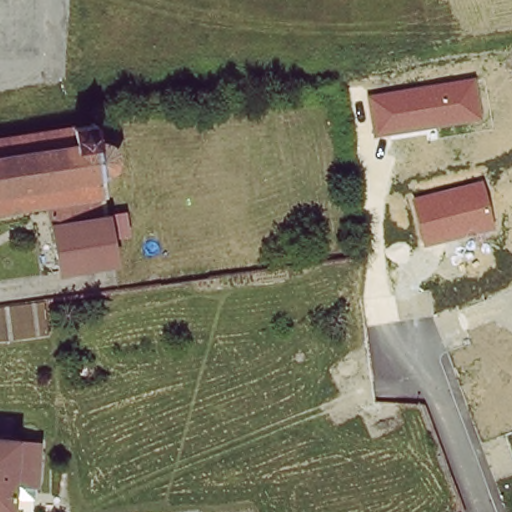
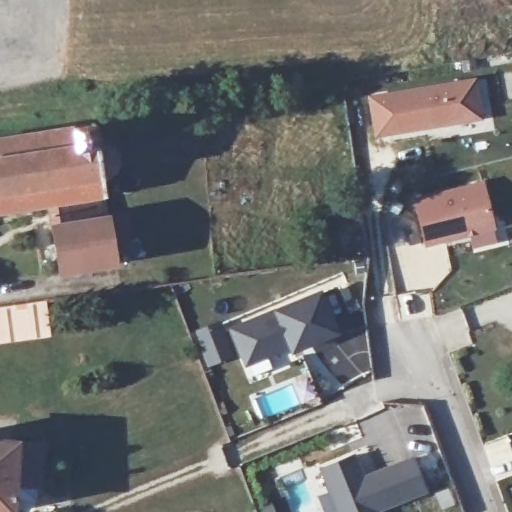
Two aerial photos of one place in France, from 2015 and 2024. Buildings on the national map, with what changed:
unchanged [(374,138),(367,97),(475,79),(482,119),(374,138)]
unchanged [(0,206),(0,134),(95,120),(98,137),(101,137),(105,138),(109,140),(112,142),(114,145),(116,149),(118,152),(118,156),(117,160),(116,164),(114,167),(111,170),(108,172),(104,174),(106,191),(101,192),(98,192),(65,197),(49,200),(0,206)]
unchanged [(495,230),(424,247),(413,200),(482,182),(495,230)]
unchanged [(49,200),(65,197),(98,192),(101,214),(110,213),(118,260),(62,268),(50,207),(49,200)]
new [(245,367),(230,328),(276,307),(324,290),(339,335),(291,354),(289,348),(245,367)]
unchanged [(45,297),(51,335),(0,345),(0,304),(45,297)]
unchanged [(21,492),(12,492),(11,507),(0,506),(0,435),(40,438),(37,477),(13,476),(12,485),(21,486),(21,492)]
new [(357,452),(365,475),(412,456),(427,493),(381,512),(337,512),(319,468),(357,452)]

